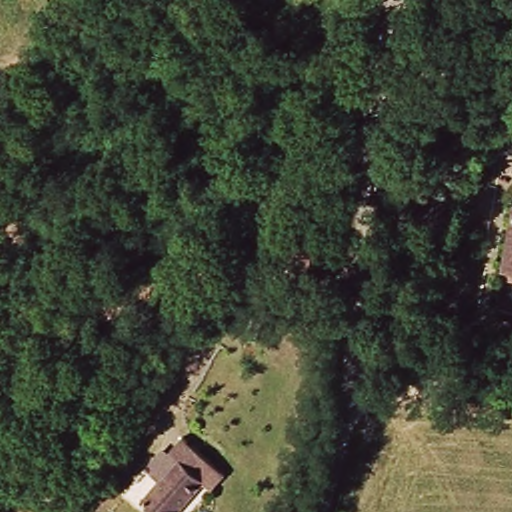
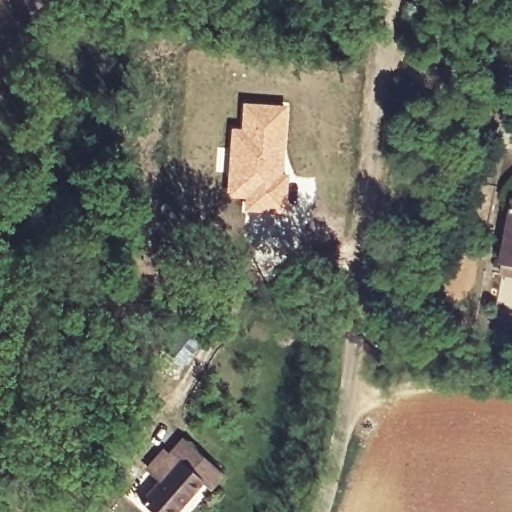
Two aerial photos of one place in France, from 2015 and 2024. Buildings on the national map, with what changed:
new [(230,126),(240,126),(242,101),(288,103),(285,174),(288,174),(288,213),(243,212),(242,197),(226,196),(230,126)]
unchanged [(506,266),(512,228),(512,267),(506,266)]
new [(183,324),(200,336),(185,357),(168,345),(183,324)]
unchanged [(162,453),(177,436),(220,471),(205,490),(197,483),(175,512),(148,512),(139,505),(172,462),(162,453)]

